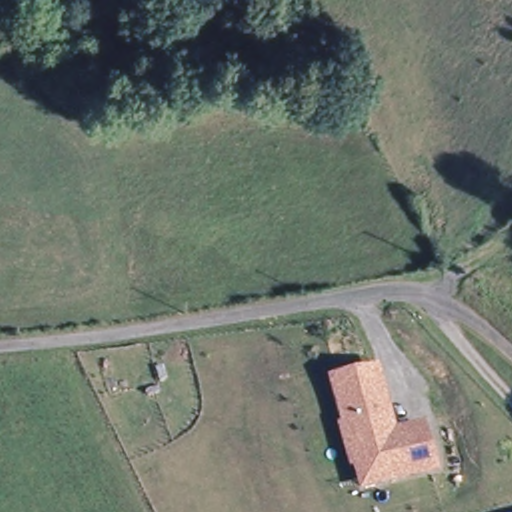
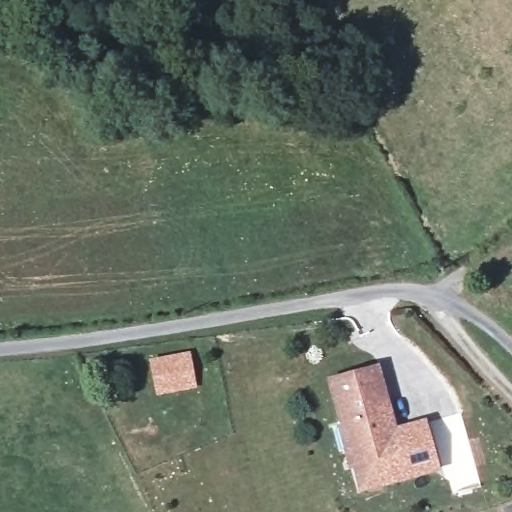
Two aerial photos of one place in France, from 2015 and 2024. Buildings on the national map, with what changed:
new [(156,395),(149,359),(190,352),(196,388),(156,395)]
unchanged [(354,466),(334,380),(378,370),(388,412),(383,414),(388,434),(422,426),(432,470),(383,482),(359,487),(354,466)]

